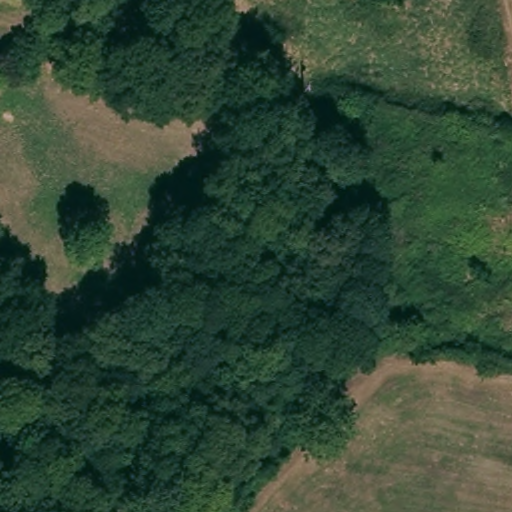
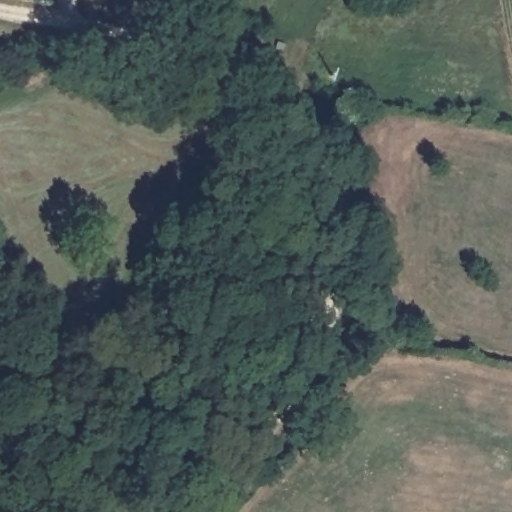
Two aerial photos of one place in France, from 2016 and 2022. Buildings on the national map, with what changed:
unchanged [(30,2),(17,0),(30,0),(30,2)]

